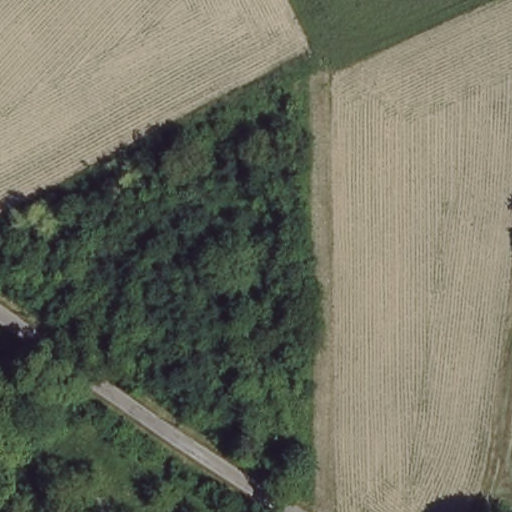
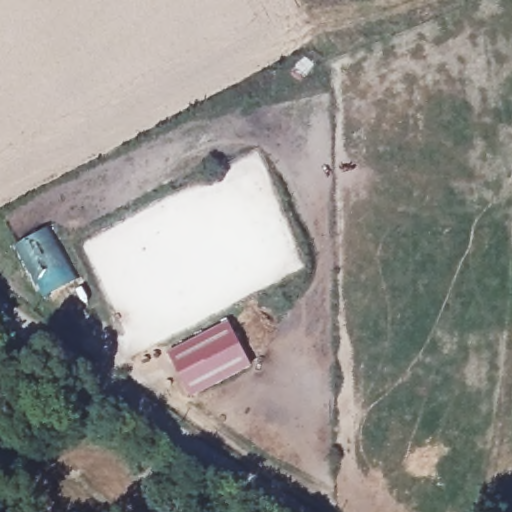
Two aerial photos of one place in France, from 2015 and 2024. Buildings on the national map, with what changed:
new [(231,327),(253,371),(195,400),(173,357),(231,327)]

